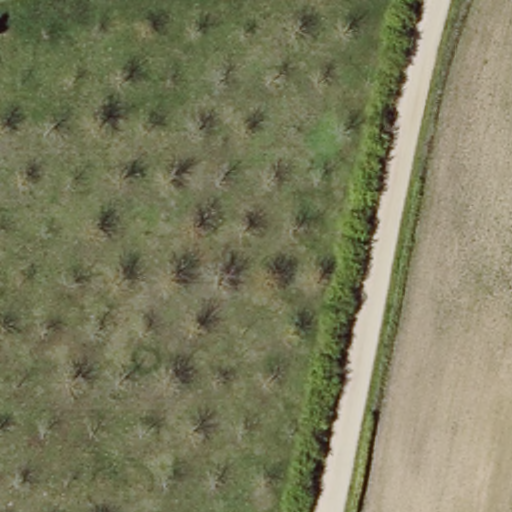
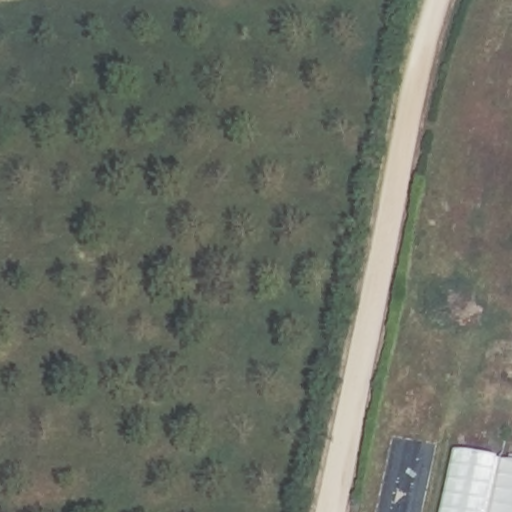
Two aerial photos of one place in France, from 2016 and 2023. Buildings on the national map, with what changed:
new [(450,449),(512,462),(512,512),(436,512),(450,449)]

